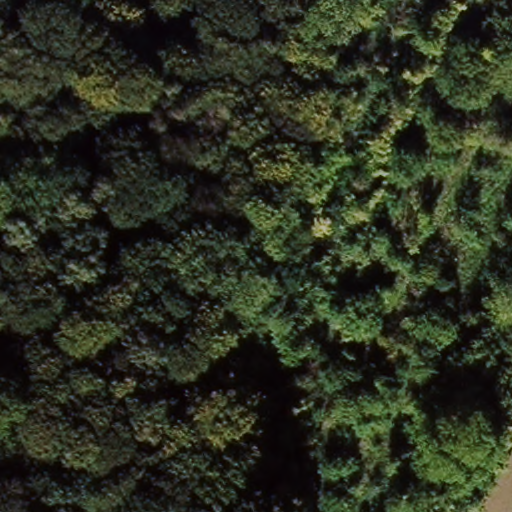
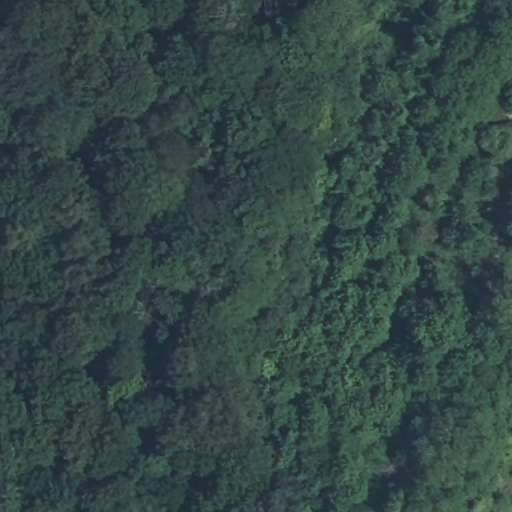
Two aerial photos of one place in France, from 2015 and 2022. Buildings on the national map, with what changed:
[]

